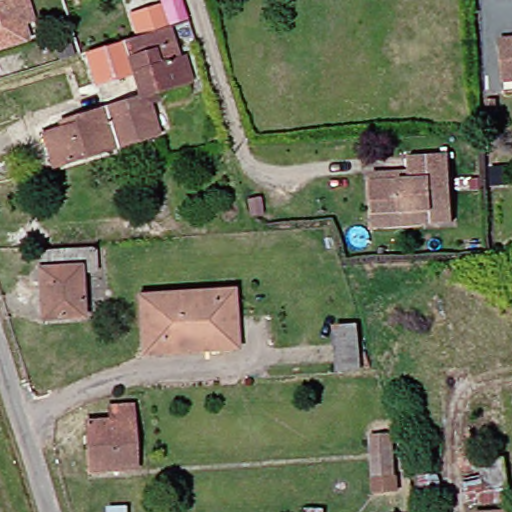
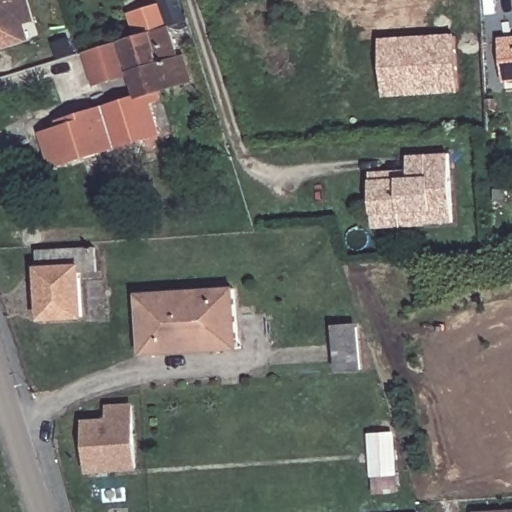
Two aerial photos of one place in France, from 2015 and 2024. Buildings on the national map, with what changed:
unchanged [(25,27),(29,41),(0,49),(0,0),(28,0),(35,24),(25,27)]
unchanged [(113,41),(125,38),(119,18),(150,9),(147,0),(170,0),(174,14),(177,21),(159,26),(170,60),(174,59),(182,84),(147,95),(149,101),(140,105),(149,136),(45,169),(44,166),(34,137),(52,131),(51,124),(61,121),(132,100),(113,41)]
new [(460,93),(385,97),(381,38),(457,32),(460,93)]
unchanged [(501,81),(497,41),(512,39),(512,80),(501,81)]
unchanged [(368,214),(366,178),(366,172),(403,169),(404,154),(444,152),(447,220),(418,222),(369,224),(368,214)]
unchanged [(87,275),(70,276),(73,320),(34,322),(28,253),(86,251),(87,275)]
unchanged [(132,357),(129,297),(224,291),(227,352),(204,353),(156,356),(132,357)]
unchanged [(340,373),(336,332),(357,330),(362,371),(340,373)]
unchanged [(81,439),(81,425),(106,424),(105,410),(127,409),(130,472),(109,473),(108,471),(90,472),(83,472),(81,439)]
unchanged [(397,490),(374,492),(372,440),(395,438),(397,490)]
demolished [(460,508),(456,482),(473,481),(473,463),(498,462),(498,473),(502,473),(507,506),(460,508)]
unchanged [(302,512),(318,511),(319,512),(302,512)]

